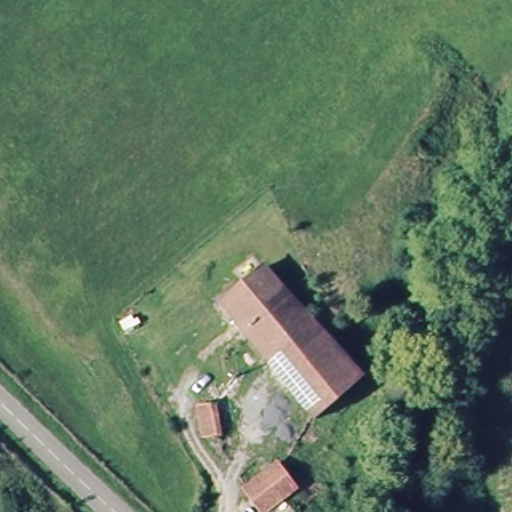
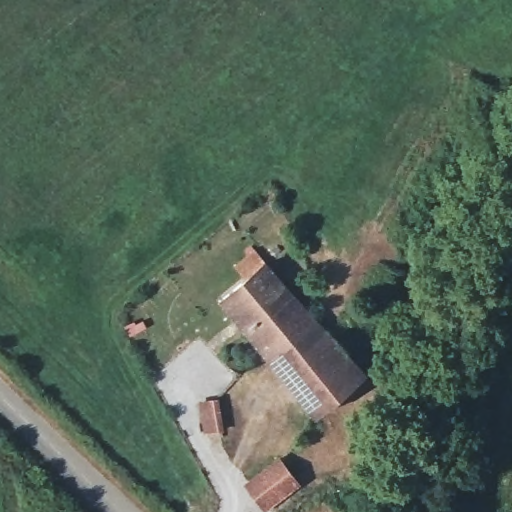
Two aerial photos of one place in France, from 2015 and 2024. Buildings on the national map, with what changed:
unchanged [(285,298),(256,255),(258,250),(270,260),(295,239),(307,253),(282,273),(295,289),(285,298)]
unchanged [(214,288),(240,266),(256,255),(285,298),(248,329),(214,288)]
unchanged [(264,349),(248,329),(285,298),(295,289),(366,376),(317,414),(313,410),(264,349)]
unchanged [(199,404),(212,401),(215,403),(216,430),(204,430),(199,404)]
unchanged [(238,504),(255,490),(238,467),(268,443),(286,469),(271,483),(285,499),(266,512),(243,512),(238,504)]

